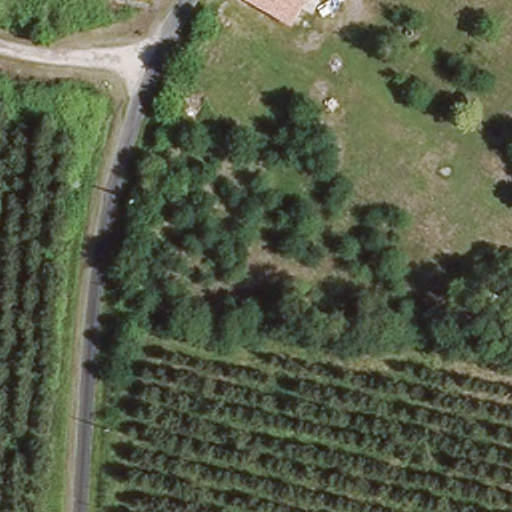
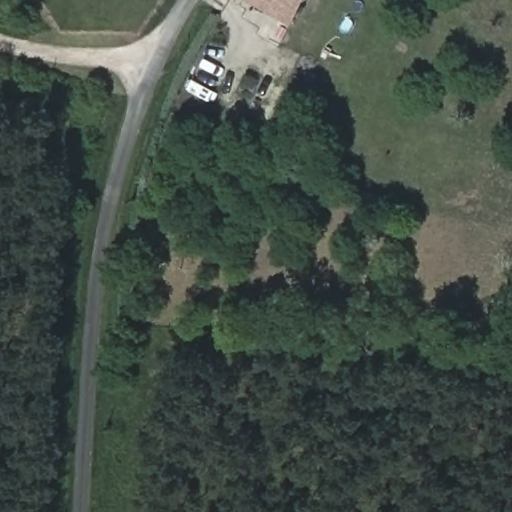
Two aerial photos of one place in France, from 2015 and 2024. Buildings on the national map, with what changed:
unchanged [(251,0),(309,0),(296,22),(251,0)]

